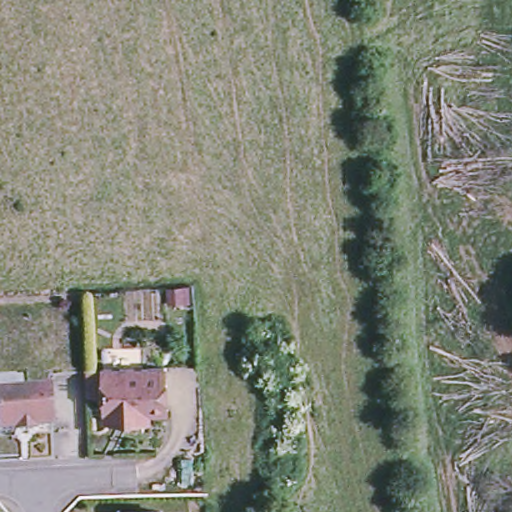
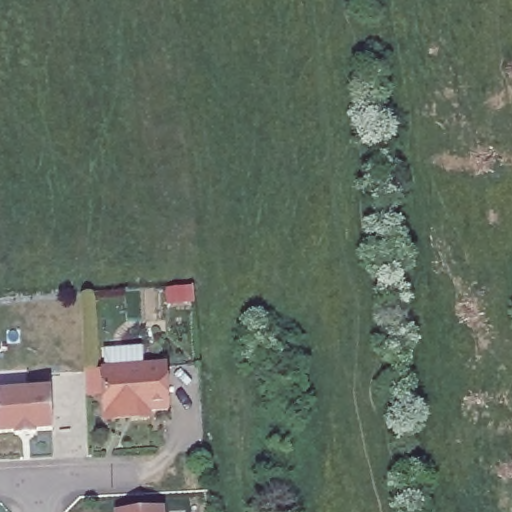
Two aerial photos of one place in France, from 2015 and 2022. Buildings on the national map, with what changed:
unchanged [(105,418),(104,408),(103,363),(167,361),(167,408),(151,408),(151,417),(105,418)]
unchanged [(52,384),(55,424),(40,425),(38,428),(15,430),(15,425),(2,427),(0,387),(52,384)]
unchanged [(113,509),(157,506),(157,512),(114,512),(113,509)]

